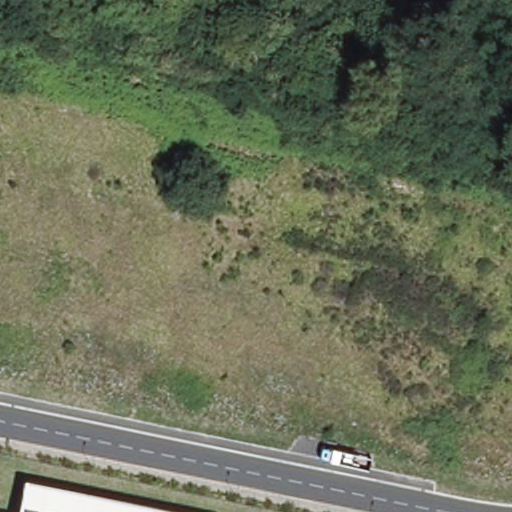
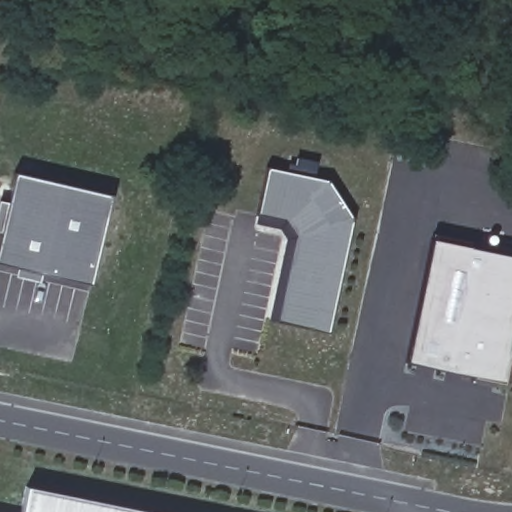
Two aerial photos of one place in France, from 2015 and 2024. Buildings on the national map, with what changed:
new [(275,322),(295,237),(283,220),(257,215),(268,166),(329,180),(354,219),(329,333),(275,322)]
new [(0,263),(0,240),(15,173),(111,195),(89,284),(0,263)]
new [(502,382),(407,363),(431,240),(512,256),(512,331),(502,382)]
unchanged [(19,487),(153,512),(13,512),(19,487)]

